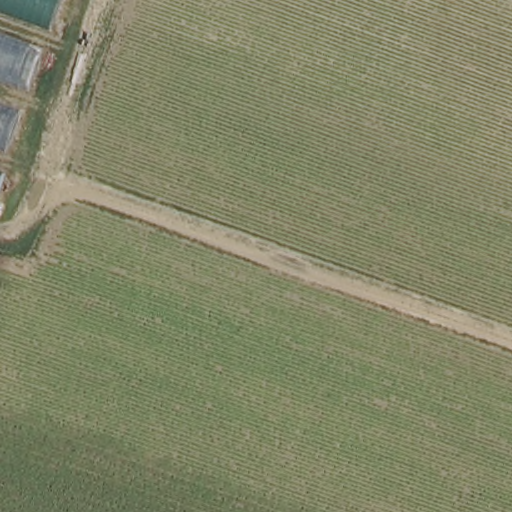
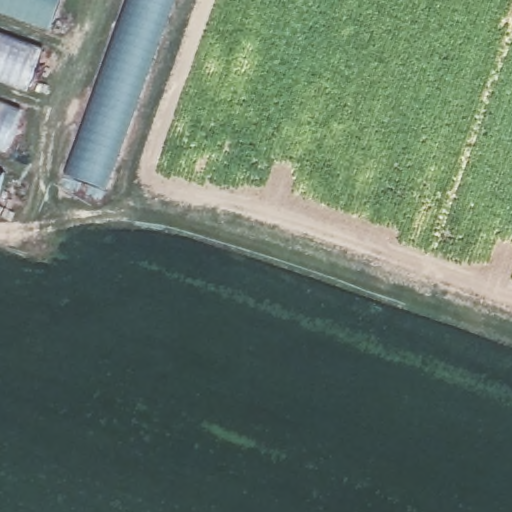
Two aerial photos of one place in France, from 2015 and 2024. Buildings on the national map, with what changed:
unchanged [(0,0),(65,0),(0,185),(0,0)]
new [(124,0),(173,0),(103,191),(62,176),(124,0)]

